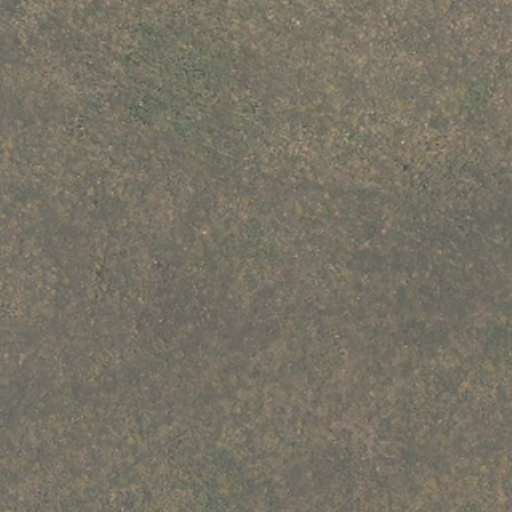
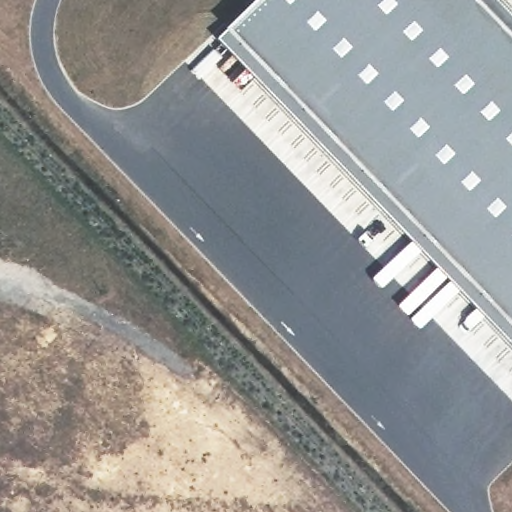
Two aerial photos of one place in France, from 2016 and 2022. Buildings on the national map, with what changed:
new [(512,344),(218,39),(227,28),(256,0),(500,0),(512,12),(512,344)]

